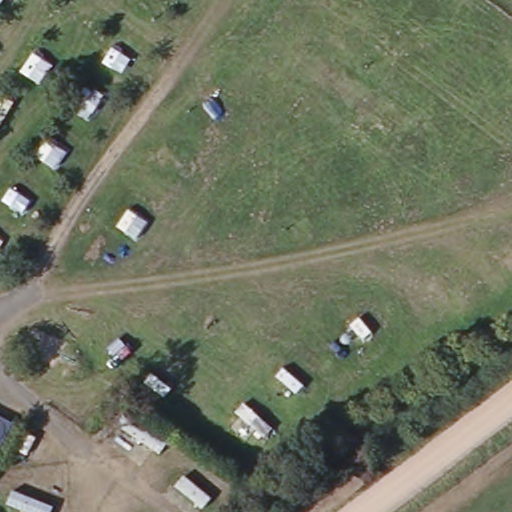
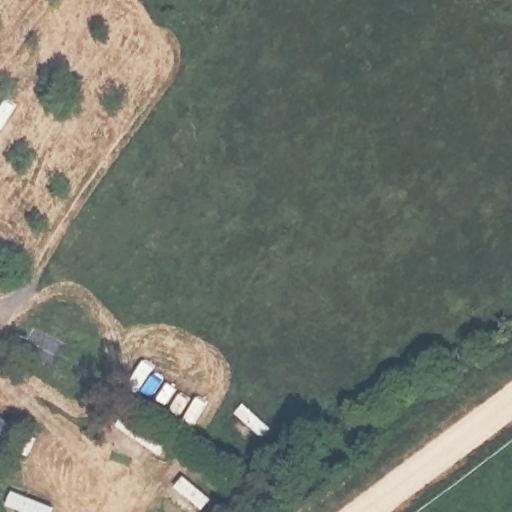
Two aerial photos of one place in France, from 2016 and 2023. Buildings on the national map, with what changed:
unchanged [(0,439),(0,411),(10,417),(0,439)]

